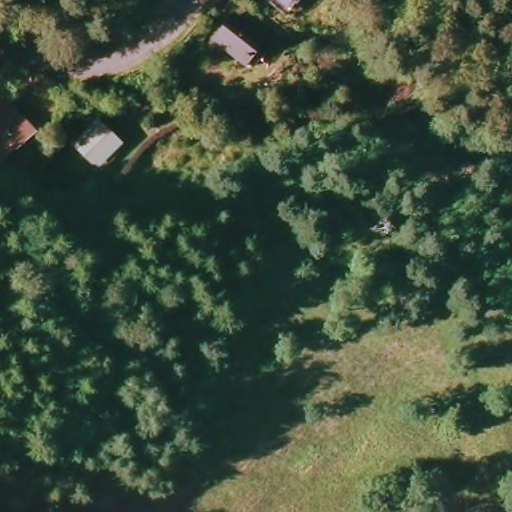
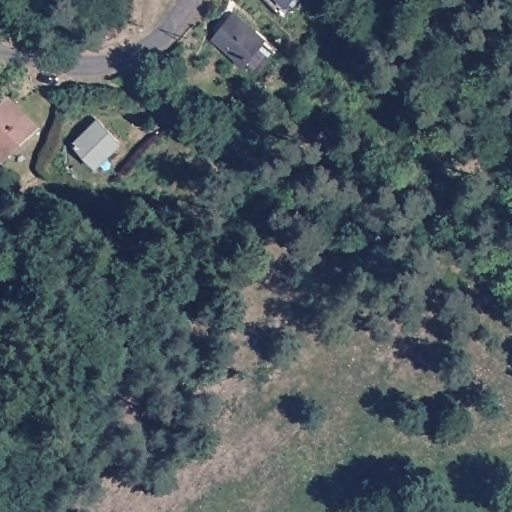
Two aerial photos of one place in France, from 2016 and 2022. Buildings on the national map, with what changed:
unchanged [(288,0),(285,5),(277,0),(288,0)]
unchanged [(214,52),(234,16),(264,31),(243,68),(214,52)]
unchanged [(3,99),(35,139),(0,164),(0,101),(3,99)]
unchanged [(65,144),(93,114),(122,142),(92,171),(65,144)]

